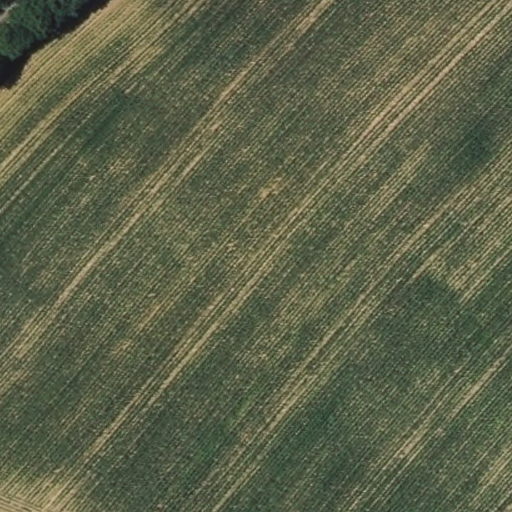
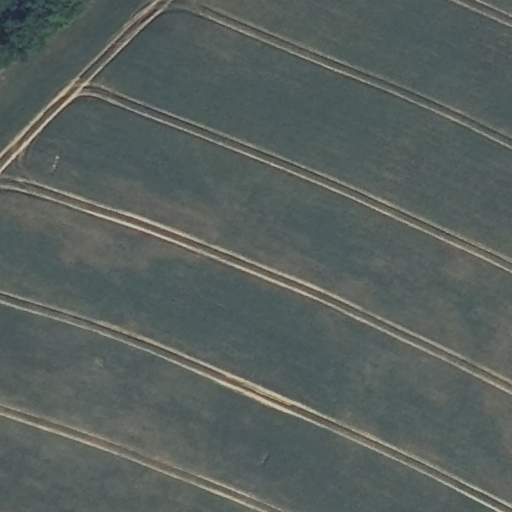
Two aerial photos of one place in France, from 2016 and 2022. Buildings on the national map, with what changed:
[]

